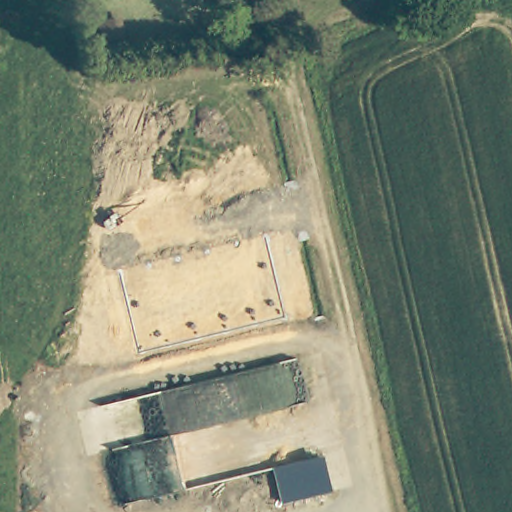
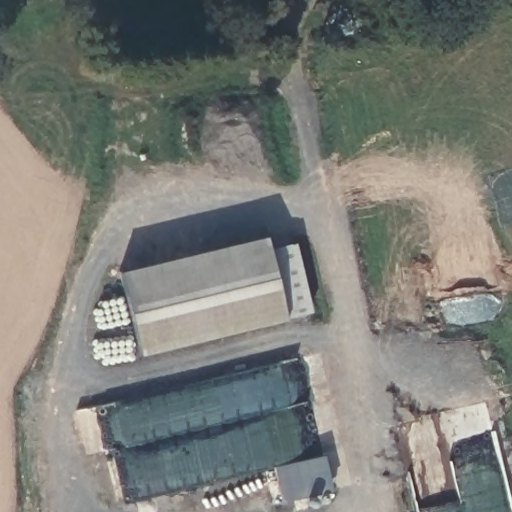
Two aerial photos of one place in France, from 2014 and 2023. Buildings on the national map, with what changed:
unchanged [(110,21),(115,42),(101,46),(95,24),(110,21)]
new [(267,234),(285,319),(140,354),(118,269),(267,234)]

